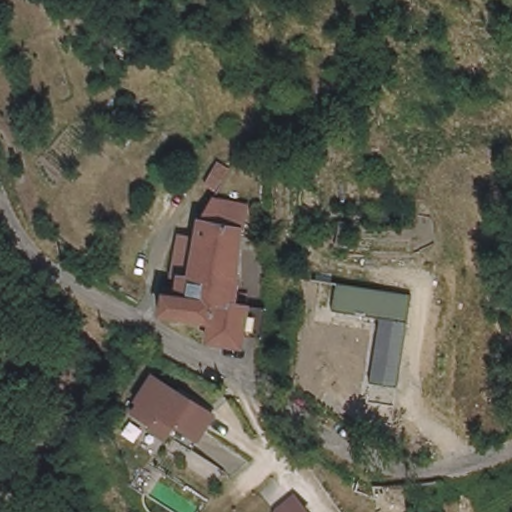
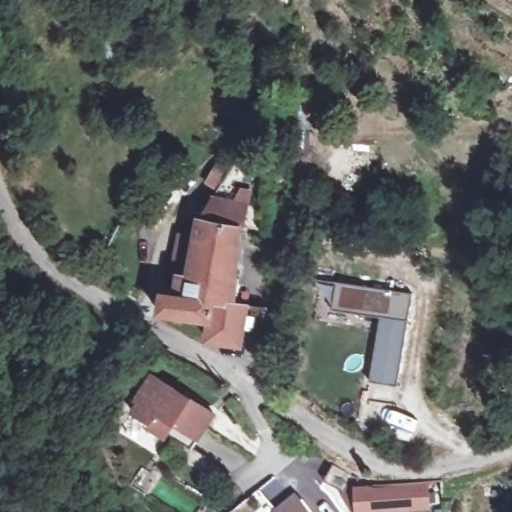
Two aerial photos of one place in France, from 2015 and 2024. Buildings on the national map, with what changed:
unchanged [(376,168),(373,184),(360,181),(363,164),(376,168)]
unchanged [(264,339),(245,337),(245,349),(210,346),(212,323),(162,318),(164,284),(179,286),(180,274),(193,275),(198,224),(199,221),(208,205),(219,206),(249,208),(247,229),(242,229),(235,304),(249,306),(266,307),(264,339)]
unchanged [(410,295),(397,387),(370,383),(379,318),(330,310),(332,284),(410,295)]
unchanged [(168,446),(165,450),(148,439),(151,435),(134,423),(140,414),(136,412),(152,387),(172,400),(172,401),(188,412),(189,411),(213,426),(191,460),(168,446)]
new [(324,482),(332,464),(365,484),(428,482),(430,509),(391,512),(351,512),(339,495),(343,491),(324,482)]
unchanged [(306,512),(288,512),(299,503),(306,512)]

